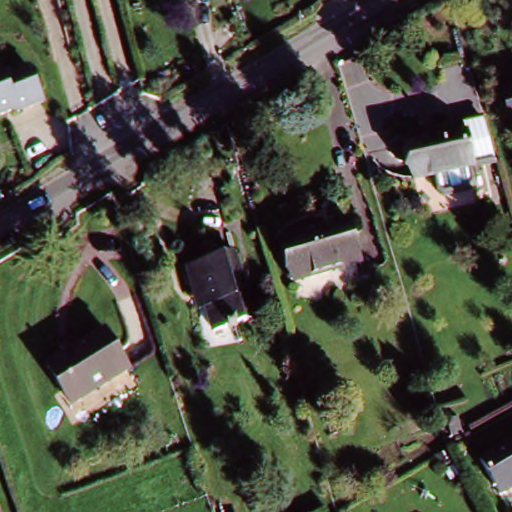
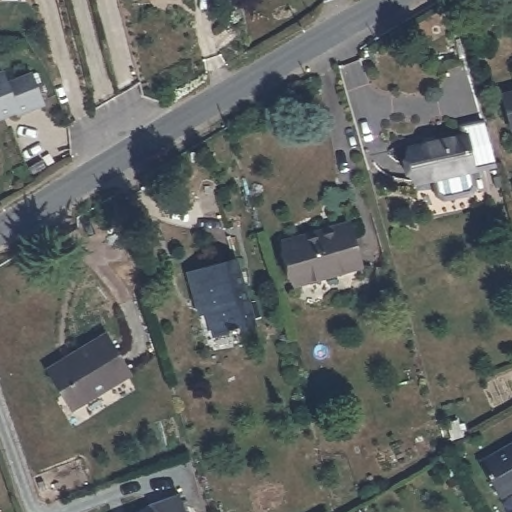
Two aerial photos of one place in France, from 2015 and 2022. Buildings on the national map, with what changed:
unchanged [(150,1),(149,0),(154,0),(150,1)]
unchanged [(44,103),(17,116),(15,112),(0,119),(0,74),(4,83),(30,71),(44,103)]
unchanged [(512,95),(512,128),(501,98),(512,95)]
unchanged [(414,150),(462,136),(473,168),(426,182),(414,150)]
unchanged [(278,242),(336,225),(348,258),(289,276),(278,242)]
unchanged [(211,300),(200,271),(231,261),(250,321),(211,333),(201,302),(211,300)]
unchanged [(108,339),(133,380),(74,414),(48,374),(108,339)]
unchanged [(512,492),(496,500),(476,463),(512,445),(512,492)]
new [(132,512),(142,506),(177,491),(184,512),(132,512)]

